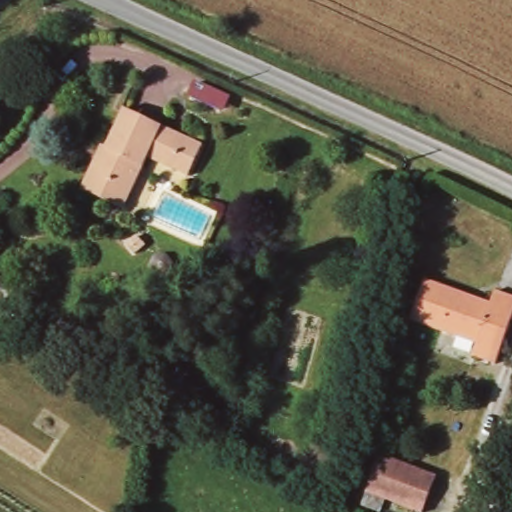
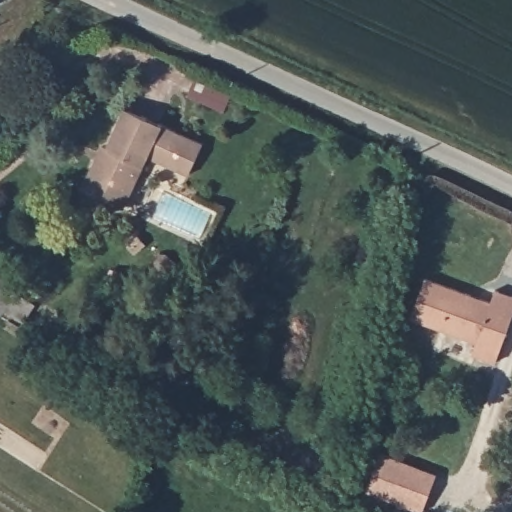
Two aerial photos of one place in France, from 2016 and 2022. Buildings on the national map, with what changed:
unchanged [(190,175),(150,157),(127,207),(85,189),(97,161),(106,165),(112,151),(108,149),(125,109),(203,145),(190,175)]
unchanged [(498,292),(512,296),(512,326),(498,363),(475,355),(479,343),(413,320),(427,280),(494,303),(498,292)]
unchanged [(10,289),(0,307),(0,283),(10,289)]
unchanged [(435,476),(422,510),(366,488),(379,455),(435,476)]

